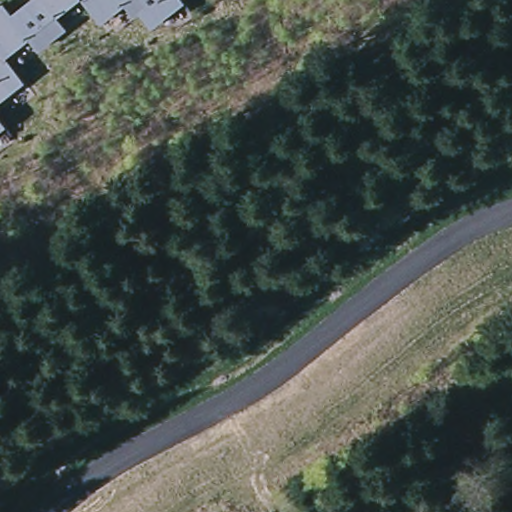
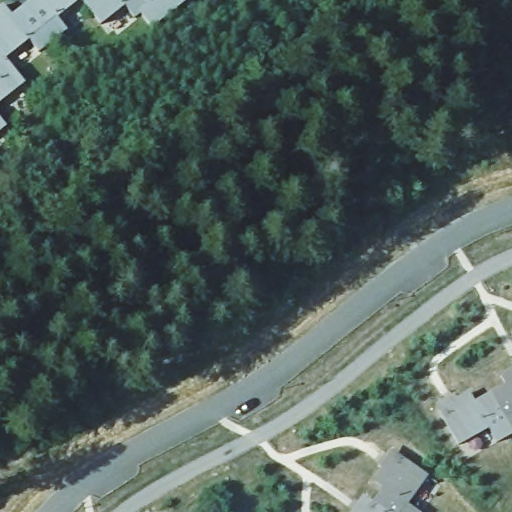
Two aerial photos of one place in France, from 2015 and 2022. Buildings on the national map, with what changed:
unchanged [(15,18),(34,0),(81,0),(57,20),(66,32),(40,52),(30,41),(7,61),(25,82),(0,104),(0,10),(5,5),(15,18)]
unchanged [(186,6),(155,31),(143,15),(139,20),(126,6),(102,25),(82,0),(182,0),(186,6)]
unchanged [(0,134),(0,124),(5,130),(0,134)]
new [(511,362),(512,362),(512,363),(511,362)]
new [(455,393),(456,398),(470,391),(475,401),(505,385),(500,373),(512,367),(512,434),(497,442),(489,429),(458,444),(435,403),(455,393)]
new [(408,503),(421,512),(351,512),(363,495),(372,501),(381,487),(373,481),(382,467),(378,465),(390,449),(428,476),(408,503)]

